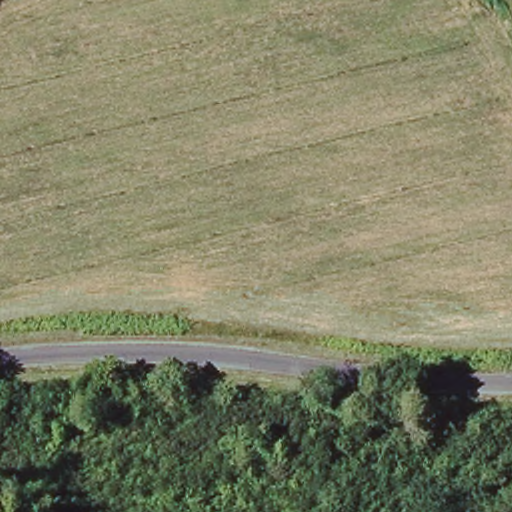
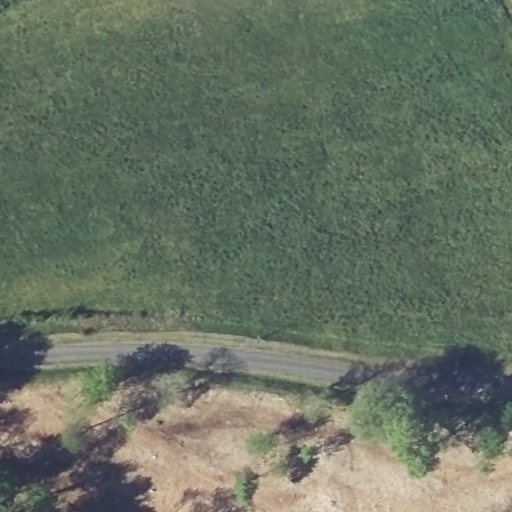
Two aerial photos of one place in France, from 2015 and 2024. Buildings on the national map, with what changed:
[]

